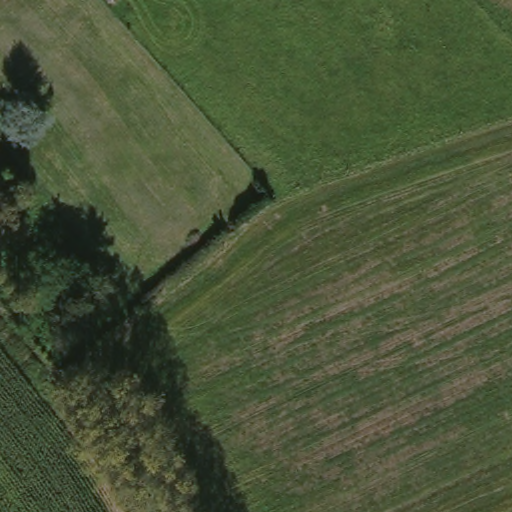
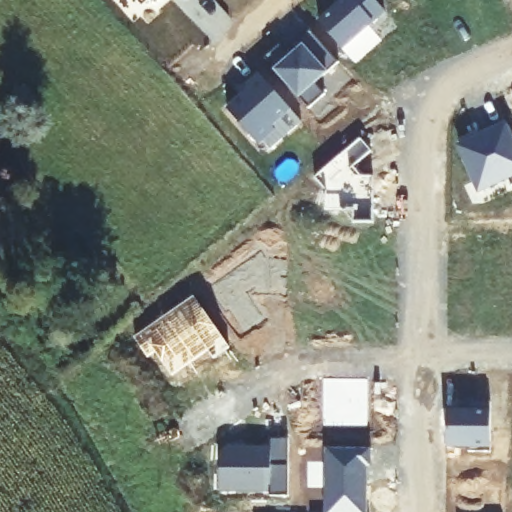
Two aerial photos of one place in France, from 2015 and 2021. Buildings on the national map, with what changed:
new [(140,2),(138,0),(143,0),(140,2)]
new [(151,1),(151,0),(153,0),(151,1)]
new [(343,0),(375,0),(384,11),(342,48),(318,21),(343,0)]
new [(277,43),(288,55),(300,45),(295,40),(308,28),(337,61),(313,81),(323,92),(307,107),(262,56),(277,43)]
new [(250,89),(247,85),(260,75),(291,110),(272,126),(274,130),(258,144),(228,109),(250,89)]
new [(475,129),(479,137),(493,131),(491,127),(507,120),(512,131),(512,183),(508,185),(505,176),(474,190),(459,156),(462,155),(455,138),(475,129)]
new [(195,295),(229,345),(213,356),(208,348),(172,373),(155,349),(148,355),(135,336),(195,295)]
new [(447,410),(470,410),(470,402),(491,402),(491,452),(469,451),(469,446),(447,446),(447,410)]
new [(221,454),(227,448),(271,449),(271,438),(288,439),(288,497),(270,497),(270,491),(221,490),(221,454)]
new [(370,449),(370,468),(367,467),(366,512),(324,512),(325,448),(370,449)]

